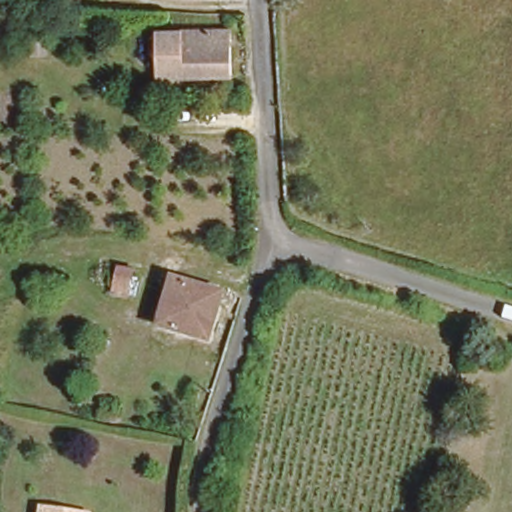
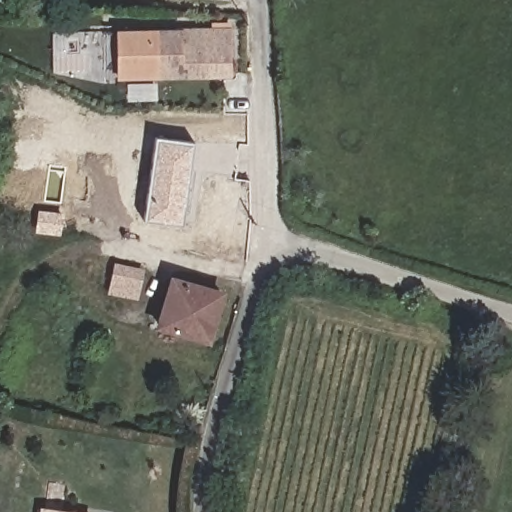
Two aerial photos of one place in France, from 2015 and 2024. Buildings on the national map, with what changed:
unchanged [(33,23),(48,24),(45,55),(31,54),(33,23)]
unchanged [(153,24),(228,24),(229,70),(154,69),(153,24)]
new [(154,69),(154,79),(117,79),(115,29),(153,28),(154,69)]
new [(192,143),(181,225),(143,220),(154,138),(192,143)]
unchanged [(175,263),(205,271),(201,285),(218,291),(202,337),(156,321),(172,272),(175,263)]
unchanged [(130,286),(114,285),(118,266),(134,268),(130,286)]
unchanged [(39,501),(88,509),(88,512),(37,512),(39,501)]

